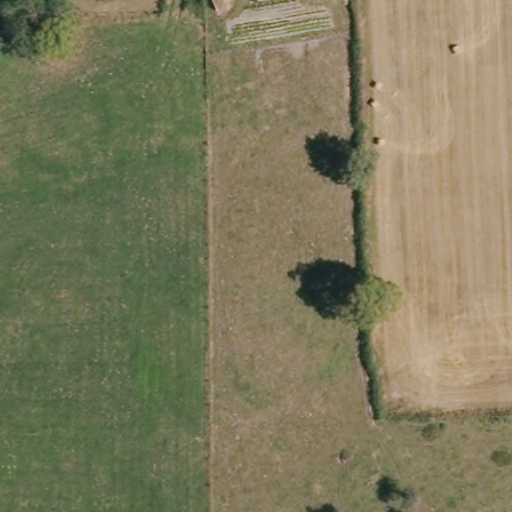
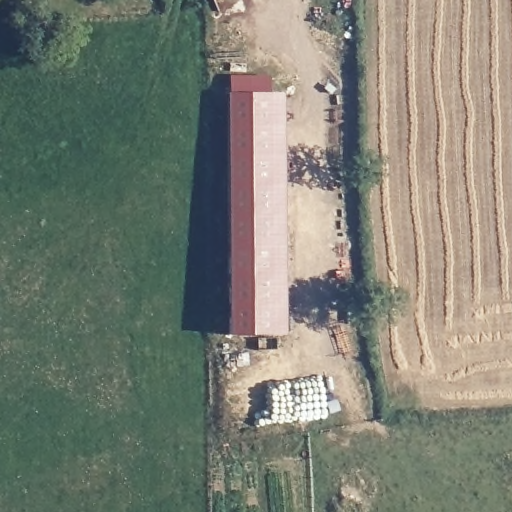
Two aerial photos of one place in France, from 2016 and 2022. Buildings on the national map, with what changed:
new [(282,95),(283,335),(228,334),(227,94),(282,95)]

